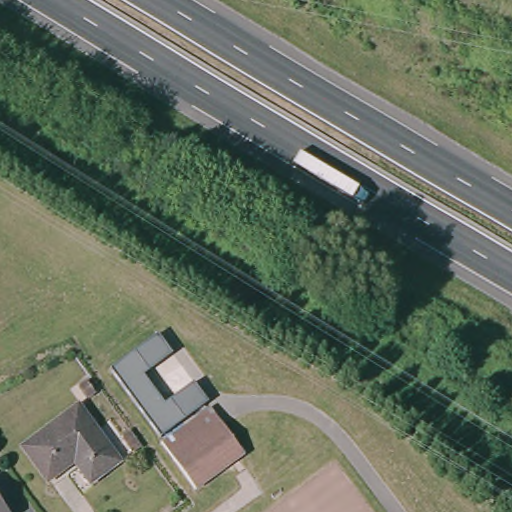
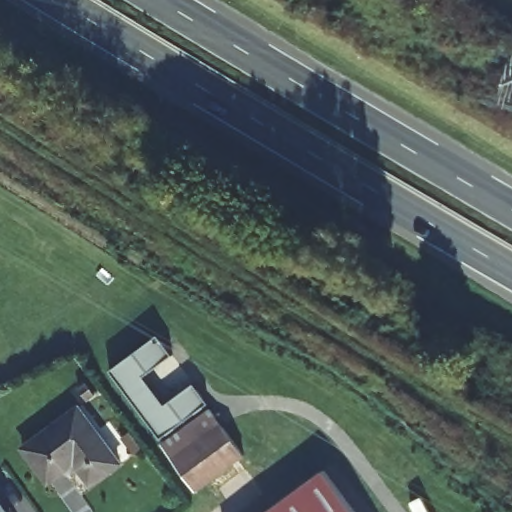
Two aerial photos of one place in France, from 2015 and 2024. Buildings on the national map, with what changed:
unchanged [(175,355),(145,377),(165,404),(193,383),(208,404),(161,437),(110,370),(161,334),(175,355)]
unchanged [(77,403),(116,460),(88,481),(73,460),(47,477),(22,442),(77,403)]
unchanged [(245,456),(195,492),(160,443),(211,407),(245,456)]
new [(267,512),(324,470),(355,512),(267,512)]

